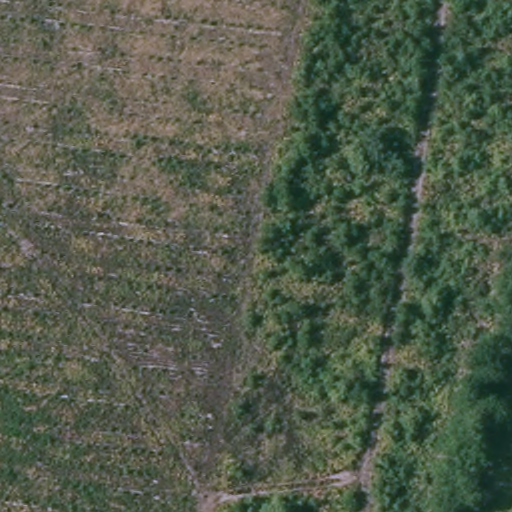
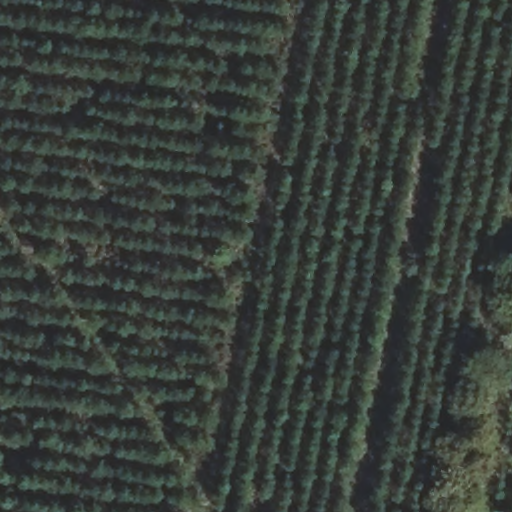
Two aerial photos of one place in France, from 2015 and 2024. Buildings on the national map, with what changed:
[]

